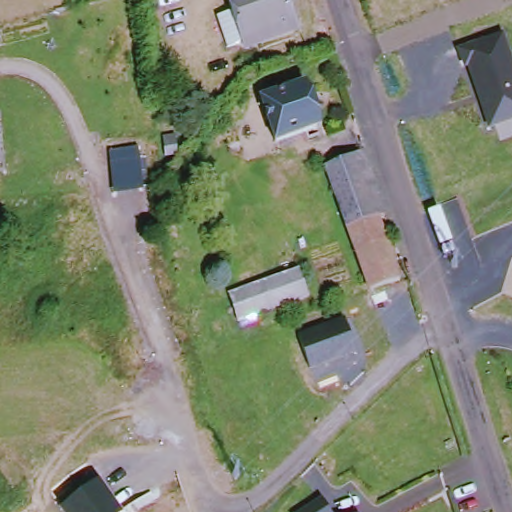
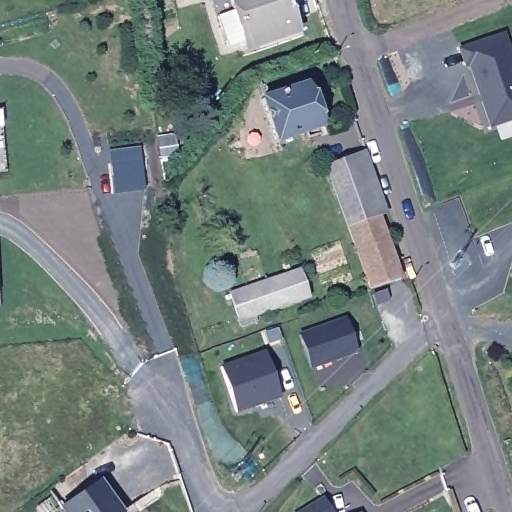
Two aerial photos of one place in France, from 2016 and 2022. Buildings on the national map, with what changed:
unchanged [(293,25),(245,41),(232,0),(285,0),(293,25)]
unchanged [(466,70),(458,48),(506,34),(512,52),(512,123),(491,130),(470,68),(466,70)]
unchanged [(276,138),(262,96),(303,83),(316,126),(276,138)]
unchanged [(111,149),(139,146),(143,190),(115,193),(111,149)]
unchanged [(352,156),(361,153),(401,280),(396,282),(364,293),(319,166),(352,156)]
unchanged [(239,321),(230,295),(299,270),(308,296),(239,321)]
unchanged [(356,351),(309,366),(298,332),(345,316),(356,351)]
new [(224,366),(267,351),(282,396),(239,411),(224,366)]
unchanged [(103,479),(126,512),(62,512),(60,509),(103,479)]
unchanged [(334,512),(302,512),(326,499),(334,512)]

